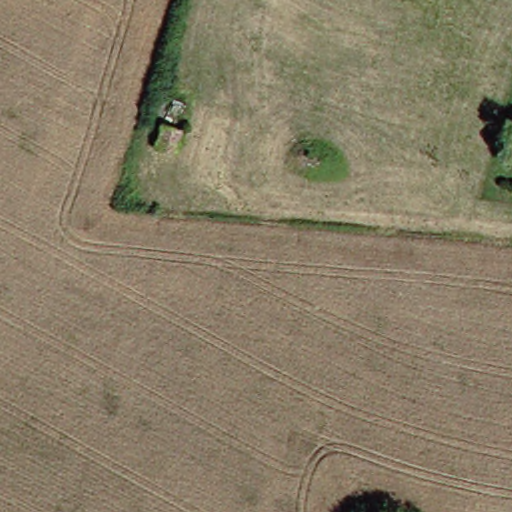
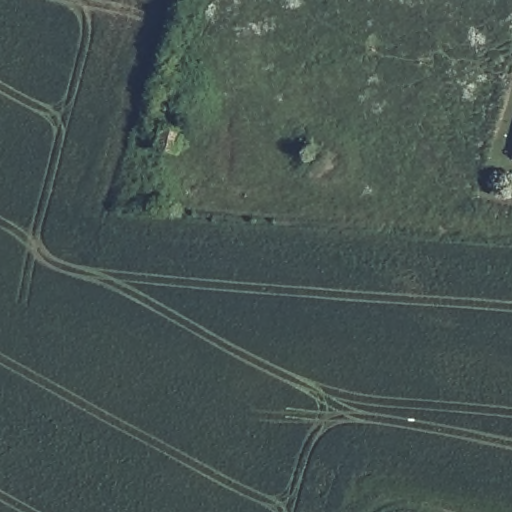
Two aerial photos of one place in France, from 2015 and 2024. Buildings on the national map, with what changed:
unchanged [(188,110),(175,157),(153,154),(165,105),(188,110)]

